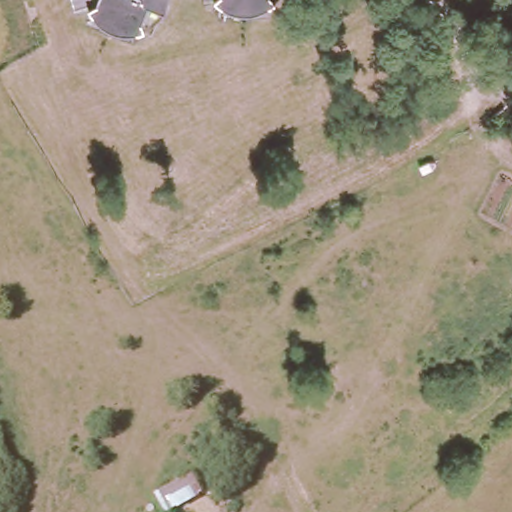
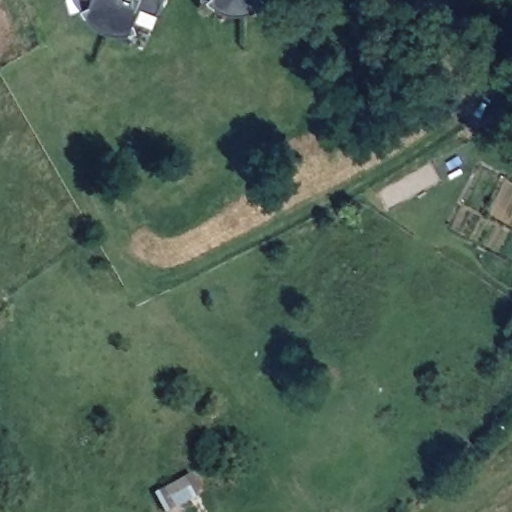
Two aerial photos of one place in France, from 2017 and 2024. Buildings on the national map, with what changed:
unchanged [(140,24),(130,26),(120,25),(107,21),(95,12),(90,3),(74,9),(71,0),(167,0),(165,5),(153,19),(140,24)]
unchanged [(252,4),(235,4),(226,0),(225,0),(267,0),(265,1),(252,4)]
unchanged [(192,474),(202,493),(166,512),(164,512),(155,493),(192,474)]

